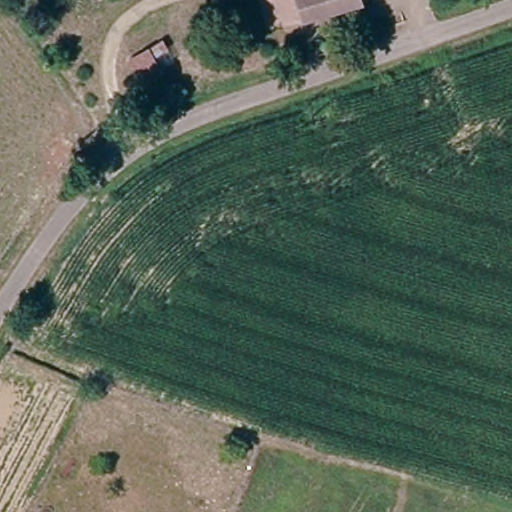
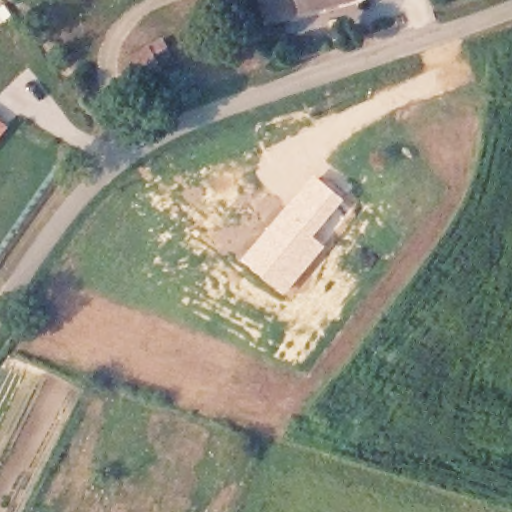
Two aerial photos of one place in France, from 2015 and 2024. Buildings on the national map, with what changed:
unchanged [(265,19),(261,1),(261,0),(331,0),(304,8),(265,19)]
unchanged [(142,52),(154,72),(138,82),(126,62),(142,52)]
new [(0,138),(0,120),(9,127),(0,138)]
new [(315,175),(345,200),(314,237),(327,247),(286,296),(242,261),(315,175)]

